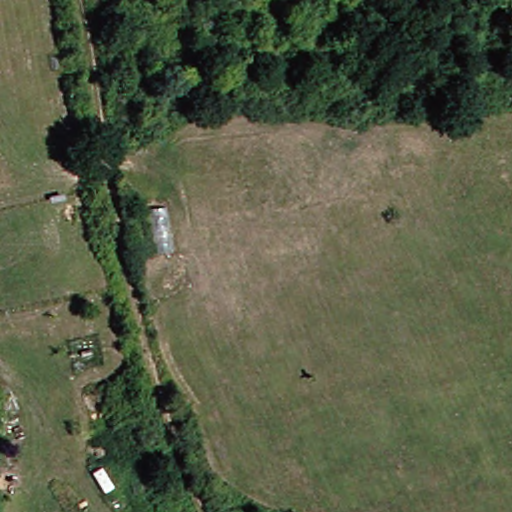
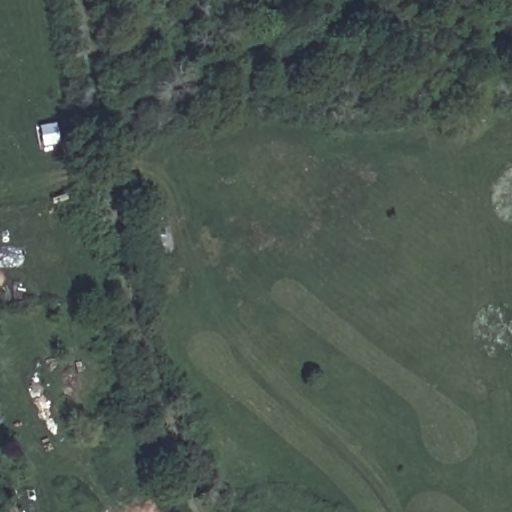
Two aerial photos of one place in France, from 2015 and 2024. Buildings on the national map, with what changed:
[]

